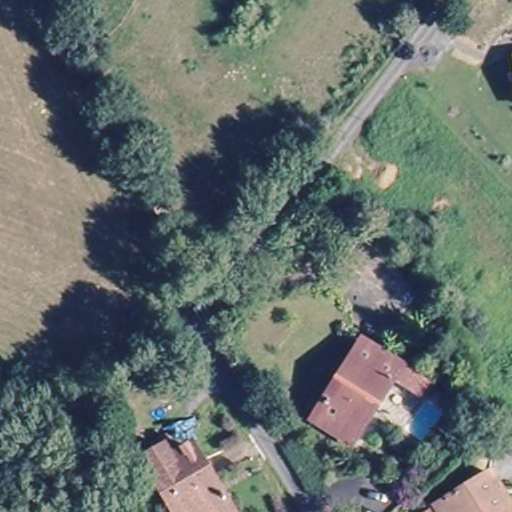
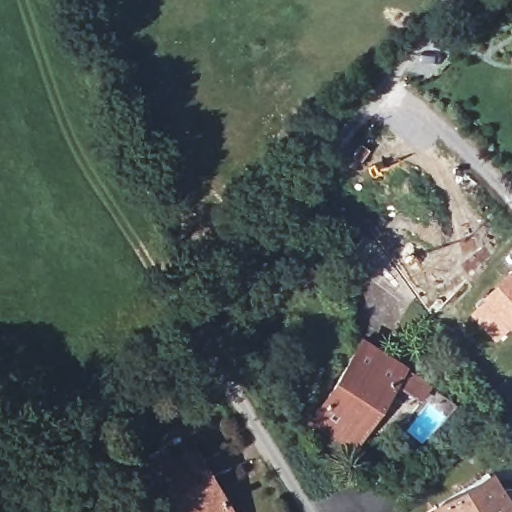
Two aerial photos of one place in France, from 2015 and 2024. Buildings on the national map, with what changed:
unchanged [(511,57),(512,57),(512,60),(511,57)]
new [(509,324),(499,336),(471,309),(484,294),(512,269),(512,328),(509,324)]
unchanged [(305,418),(360,338),(401,367),(429,386),(419,400),(392,380),(348,447),(305,418)]
unchanged [(160,445),(167,456),(188,444),(226,512),(166,512),(135,460),(160,445)]
unchanged [(488,474),(509,512),(435,512),(432,506),(488,474)]

